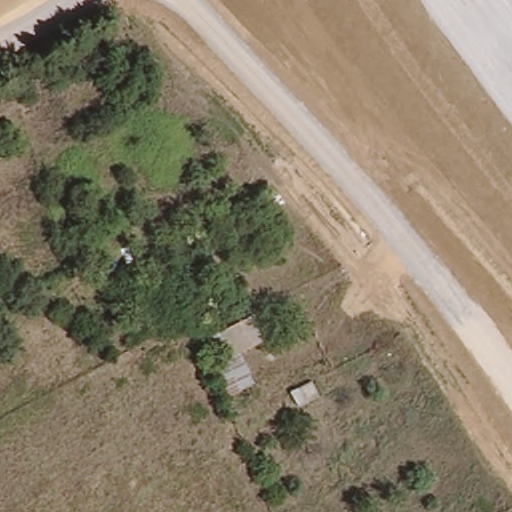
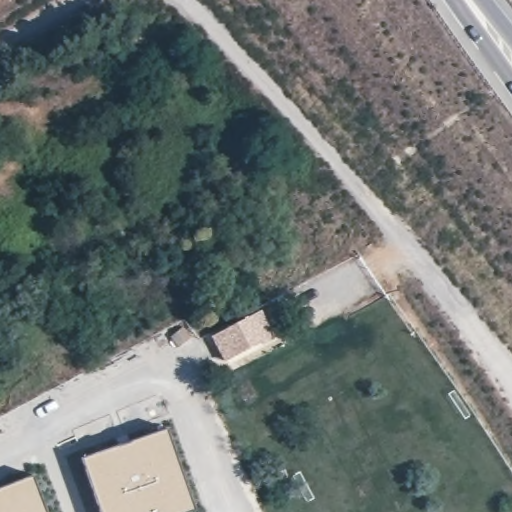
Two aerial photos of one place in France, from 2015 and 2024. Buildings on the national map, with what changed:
demolished [(351,67),(364,60),(376,83),(363,91),(351,67)]
demolished [(298,94),(341,71),(351,88),(306,111),(298,94)]
new [(261,307),(276,336),(226,363),(211,335),(261,307)]
demolished [(228,328),(255,315),(267,340),(241,353),(228,328)]
demolished [(230,401),(216,366),(232,360),(256,392),(230,401)]
new [(181,512),(101,512),(81,456),(166,426),(196,507),(181,512)]
new [(0,487),(32,474),(47,512),(0,512),(0,487)]

